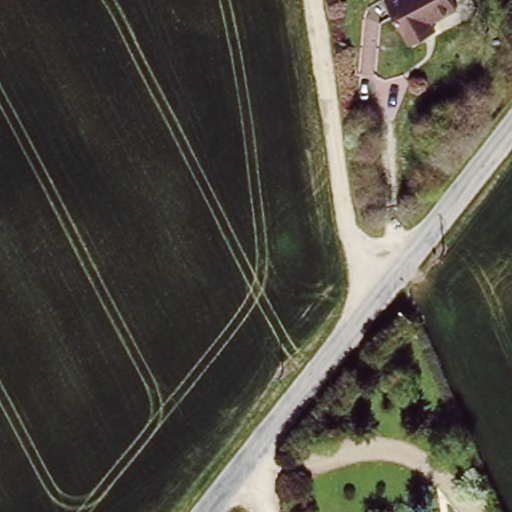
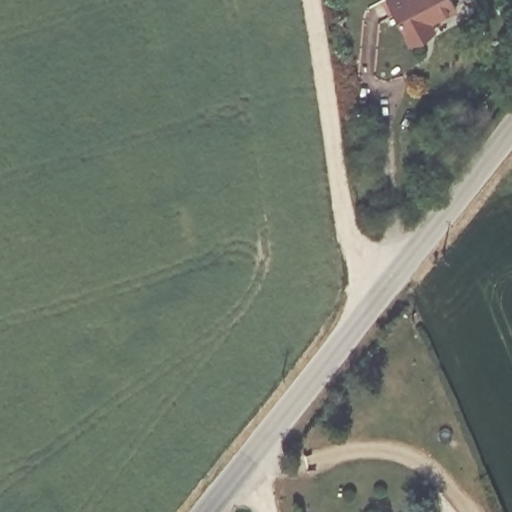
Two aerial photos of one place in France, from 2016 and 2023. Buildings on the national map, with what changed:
unchanged [(386,2),(391,0),(451,0),(457,11),(430,25),(435,35),(429,39),(411,49),(407,42),(386,2)]

